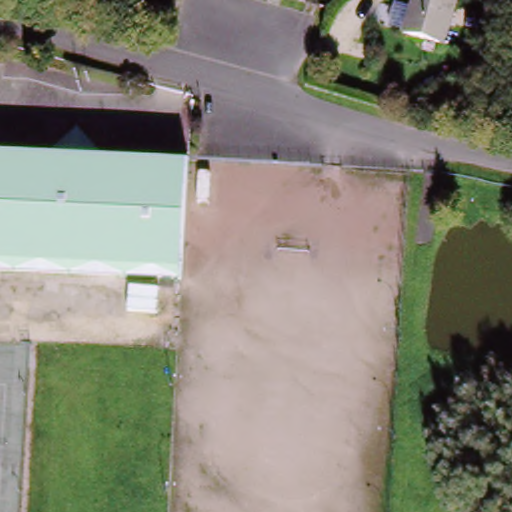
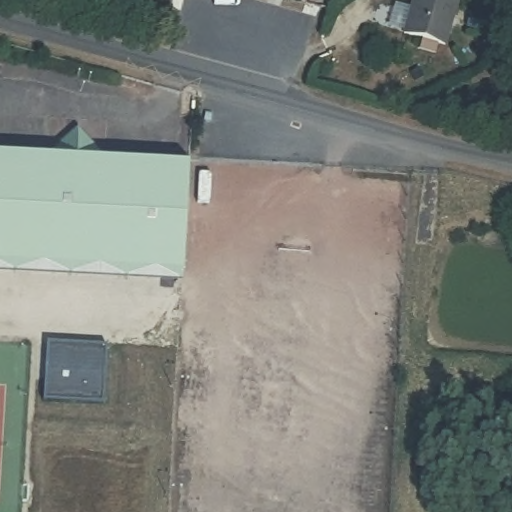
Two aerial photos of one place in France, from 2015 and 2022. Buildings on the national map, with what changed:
unchanged [(407,35),(414,0),(457,0),(448,44),(407,35)]
unchanged [(79,129),(103,152),(185,156),(181,275),(0,268),(0,147),(51,149),(79,129)]
new [(49,340),(57,341),(103,343),(101,360),(100,402),(46,400),(48,376),(48,361),(49,340)]

